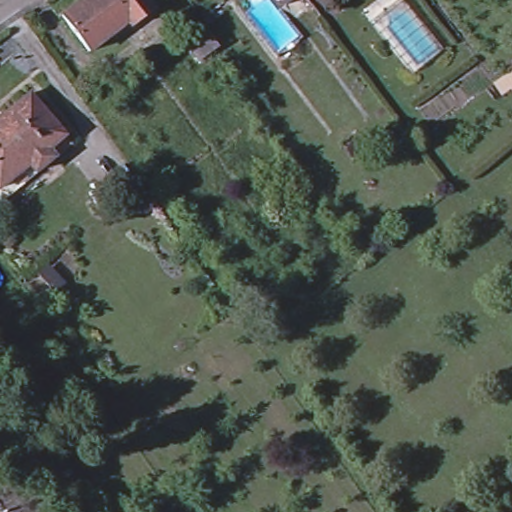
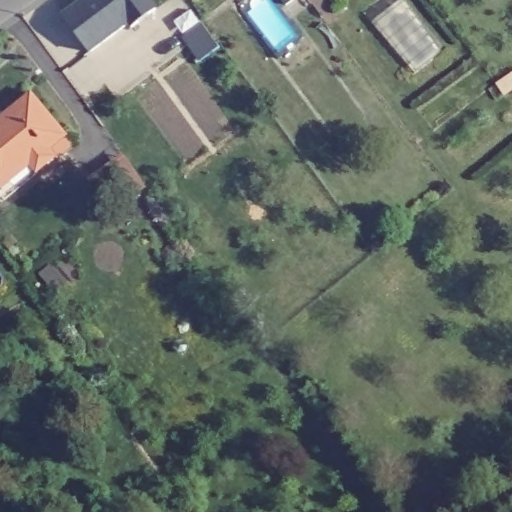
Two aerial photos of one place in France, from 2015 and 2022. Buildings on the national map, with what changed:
unchanged [(73,0),(147,0),(151,5),(130,21),(127,17),(87,47),(60,10),(73,0)]
unchanged [(295,19),(287,8),(280,0),(308,0),(312,5),(295,19)]
unchanged [(222,49),(204,62),(186,38),(204,25),(222,49)]
unchanged [(0,120),(37,89),(71,132),(55,144),(62,152),(42,168),(7,197),(0,189),(0,184),(3,181),(0,178),(0,120)]
unchanged [(13,512),(0,512),(0,495),(1,494),(13,512)]

